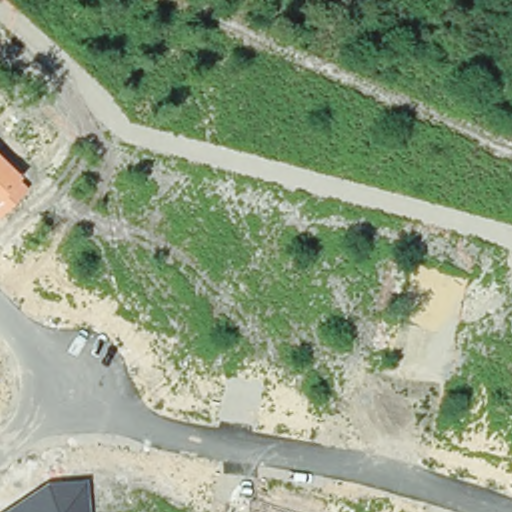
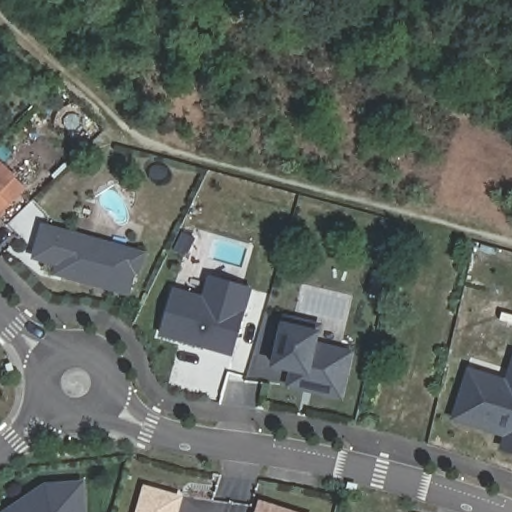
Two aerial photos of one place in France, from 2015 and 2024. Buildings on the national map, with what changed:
unchanged [(14,180),(19,181),(25,188),(0,215),(0,158),(18,176),(14,180)]
new [(145,254),(140,271),(136,270),(131,292),(59,274),(62,265),(37,258),(45,228),(145,254)]
new [(368,293),(373,274),(386,277),(382,296),(368,293)]
new [(161,333),(174,289),(219,302),(204,297),(210,276),(225,280),(251,288),(232,354),(217,349),(205,346),(161,333)]
new [(285,318),(302,322),(319,326),(318,332),(315,344),(334,349),(351,353),(341,397),(312,390),(289,385),(293,370),(274,366),(285,318)]
new [(503,448),(508,435),(455,418),(470,370),(491,377),(508,382),(512,369),(512,450),(503,448)]
unchanged [(1,512),(45,481),(87,480),(89,512),(1,512)]
new [(180,498),(176,512),(140,512),(146,489),(180,498)]
unchanged [(291,512),(260,512),(262,504),(291,512)]

